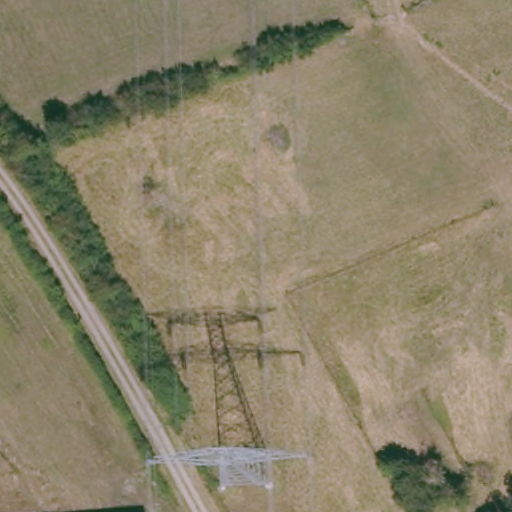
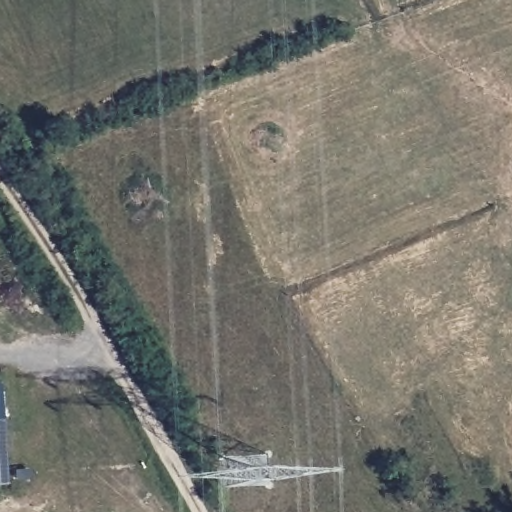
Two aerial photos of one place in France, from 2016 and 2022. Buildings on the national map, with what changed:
new [(9,484),(0,485),(0,383),(9,484)]

